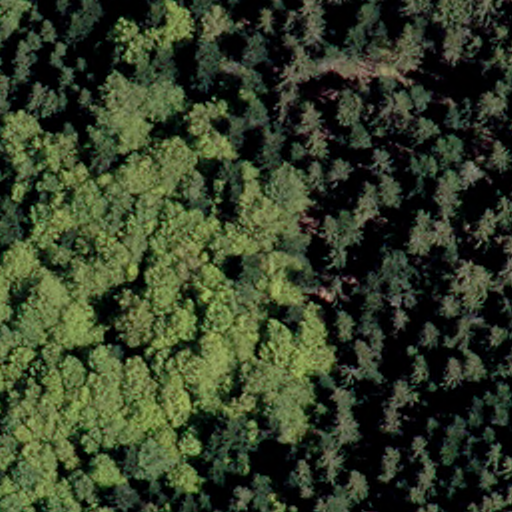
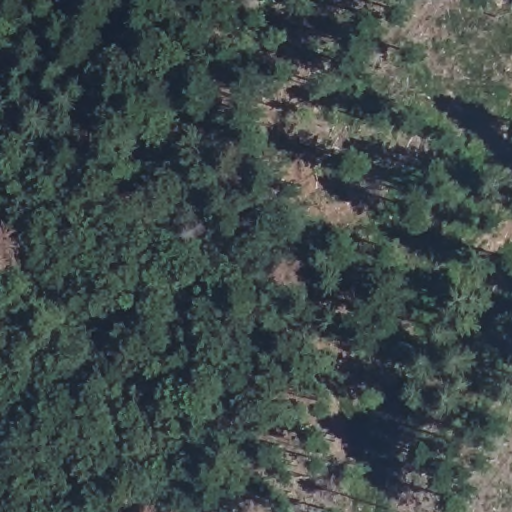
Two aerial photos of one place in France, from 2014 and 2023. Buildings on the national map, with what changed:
[]

